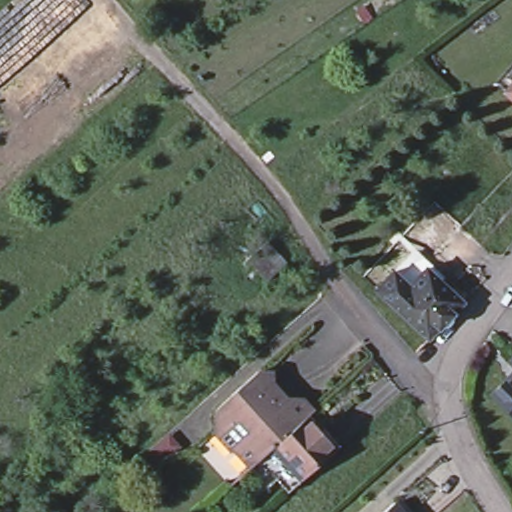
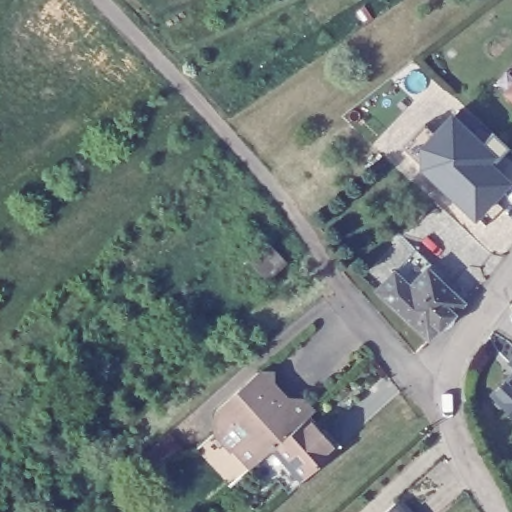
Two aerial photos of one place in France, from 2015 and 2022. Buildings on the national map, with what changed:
unchanged [(496,81),(512,63),(512,94),(496,81)]
new [(508,147),(492,163),(512,182),(512,183),(475,222),(418,169),(418,160),(403,146),(425,121),(435,130),(451,112),(483,142),(492,132),(508,147)]
demolished [(512,153),(512,154),(490,176),(466,152),(490,130),(512,153)]
unchanged [(250,259),(268,243),(287,264),(269,280),(250,259)]
unchanged [(420,334),(382,299),(377,296),(372,291),(405,254),(412,259),(415,262),(455,296),(420,334)]
unchanged [(510,359),(512,356),(512,361),(510,359)]
unchanged [(204,458),(193,446),(212,429),(212,406),(254,370),(268,372),(268,386),(261,392),(265,397),(271,397),(299,399),(309,411),(303,416),(266,449),(296,481),(283,493),(271,481),(262,489),(244,470),(228,484),(204,458)]
unchanged [(512,370),(512,409),(492,391),(512,370)]
unchanged [(303,416),(318,433),(320,430),(335,446),(330,451),(296,481),(266,449),(303,416)]
unchanged [(408,512),(377,512),(395,497),(408,512)]

